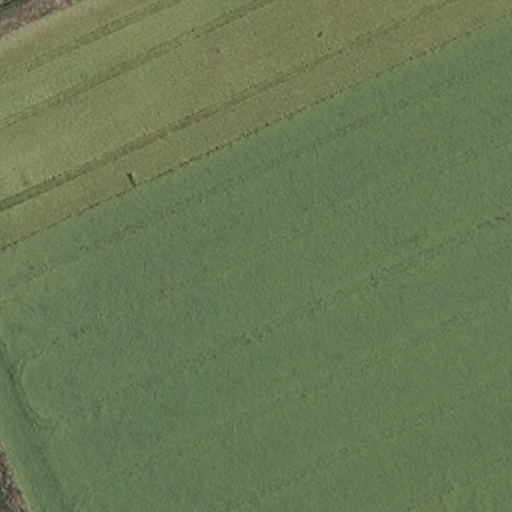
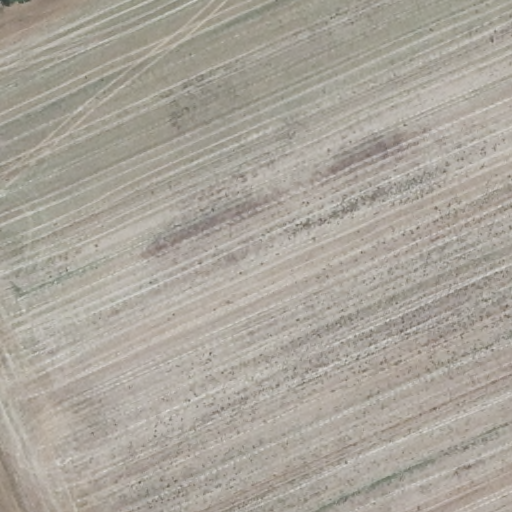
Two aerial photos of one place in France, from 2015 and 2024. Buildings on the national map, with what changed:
[]

